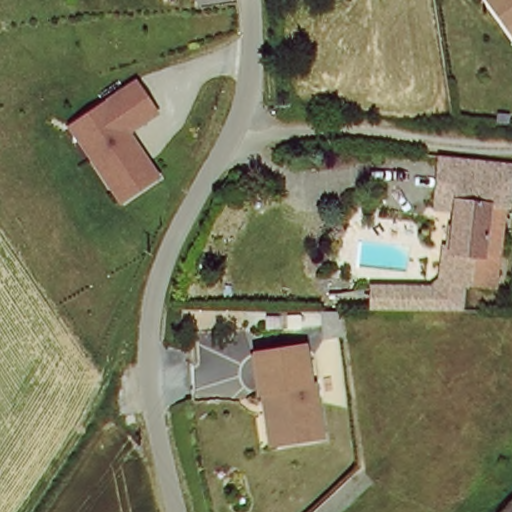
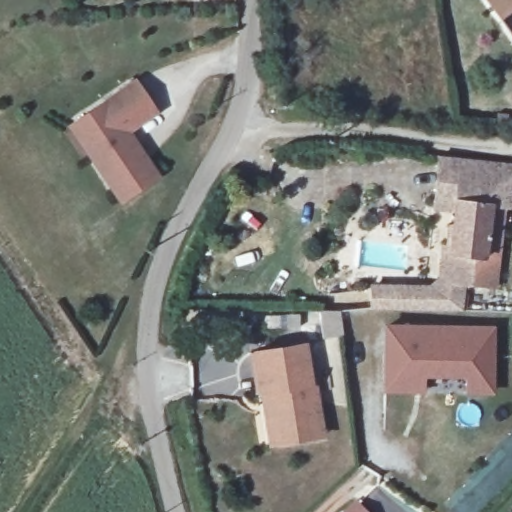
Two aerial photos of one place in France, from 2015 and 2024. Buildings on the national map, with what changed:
unchanged [(485,0),(512,0),(512,37),(485,0)]
unchanged [(156,111),(128,131),(159,176),(120,203),(81,147),(68,128),(75,123),(135,81),(156,111)]
unchanged [(464,312),(385,312),(385,290),(430,290),(430,282),(440,282),(442,254),(450,253),(452,206),(432,202),(437,176),(439,153),(453,155),(457,155),(511,161),(506,207),(492,205),(482,285),(466,283),(464,312)]
new [(495,327),(494,396),(464,395),(465,380),(423,379),(423,394),(383,393),(382,327),(495,327)]
unchanged [(303,439),(271,443),(264,444),(258,392),(252,352),(301,345),(306,385),(310,384),(315,416),(317,437),(303,439)]
demolished [(131,411),(131,425),(118,425),(119,411),(131,411)]
new [(367,512),(345,512),(356,502),(367,512)]

